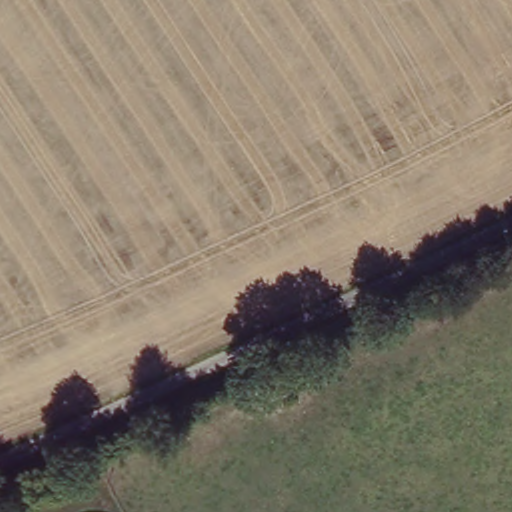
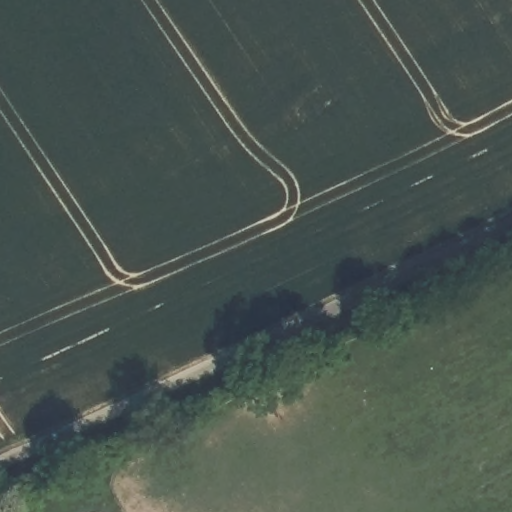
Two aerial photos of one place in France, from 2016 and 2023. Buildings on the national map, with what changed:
[]

